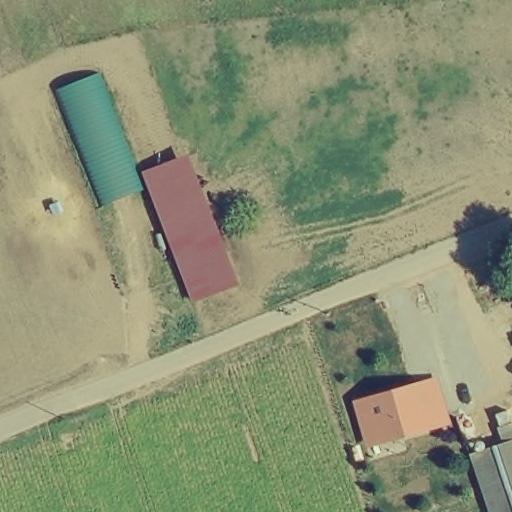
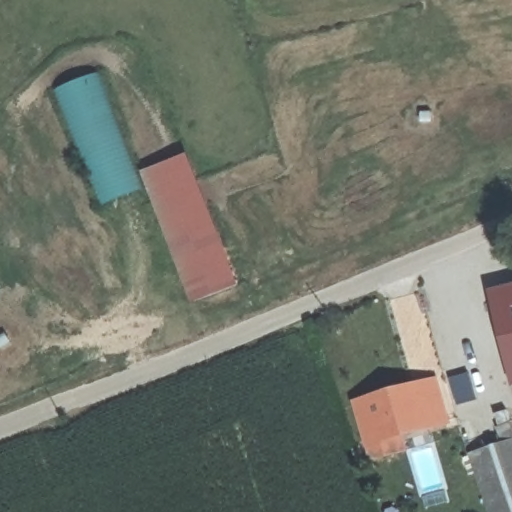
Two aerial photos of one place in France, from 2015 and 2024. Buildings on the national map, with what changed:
unchanged [(143,190),(99,210),(55,90),(98,73),(143,190)]
unchanged [(241,285),(192,302),(141,175),(191,156),(241,285)]
new [(489,290),(512,285),(512,387),(489,290)]
unchanged [(452,422),(366,448),(353,401),(438,375),(452,422)]
unchanged [(512,418),(512,512),(493,512),(473,448),(504,438),(499,423),(512,418)]

